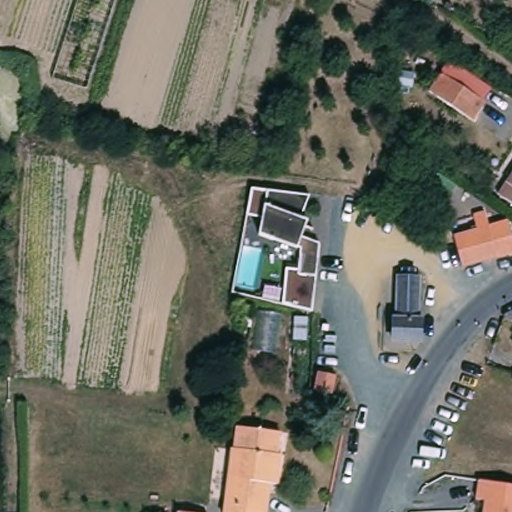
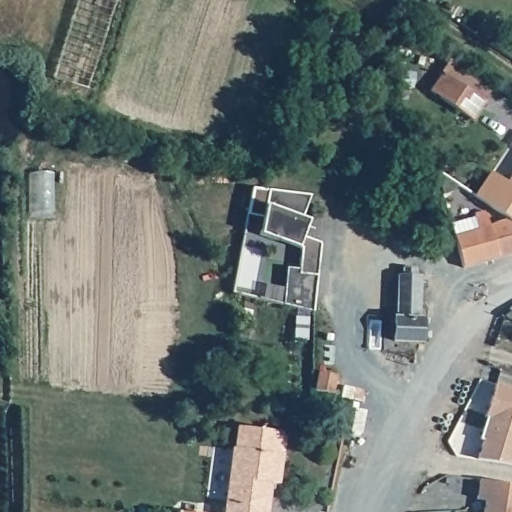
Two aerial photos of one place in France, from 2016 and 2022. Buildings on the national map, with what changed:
unchanged [(403,84),(405,71),(418,74),(416,86),(403,84)]
unchanged [(477,120),(433,91),(446,72),(490,100),(477,120)]
unchanged [(403,92),(420,92),(420,114),(403,114),(403,92)]
unchanged [(502,194),(512,180),(512,200),(502,194)]
unchanged [(317,199),(306,227),(313,229),(308,239),(326,247),(316,314),(284,307),(288,275),(299,277),(302,251),(261,235),(263,219),(250,217),(253,192),(317,199)]
unchanged [(467,268),(458,236),(481,229),(477,217),(478,214),(487,212),(489,213),(493,225),(512,220),(512,254),(467,268)]
unchanged [(423,319),(426,319),(425,342),(397,340),(398,318),(401,318),(403,277),(407,277),(407,269),(420,269),(420,278),(424,278),(423,319)]
unchanged [(508,318),(507,314),(512,312),(512,319),(508,318)]
unchanged [(332,393),(314,389),(317,372),(335,375),(332,393)]
new [(481,440),(484,428),(488,429),(491,419),(486,418),(496,385),(512,390),(512,465),(478,460),(484,442),(481,440)]
unchanged [(282,484),(274,483),(271,512),(229,512),(237,448),(240,449),(243,427),(285,432),(282,454),(285,454),(282,484)]
unchanged [(482,499),(473,498),(479,479),(512,483),(512,512),(480,512),(482,499)]
unchanged [(181,511),(189,512),(181,512),(181,511)]

